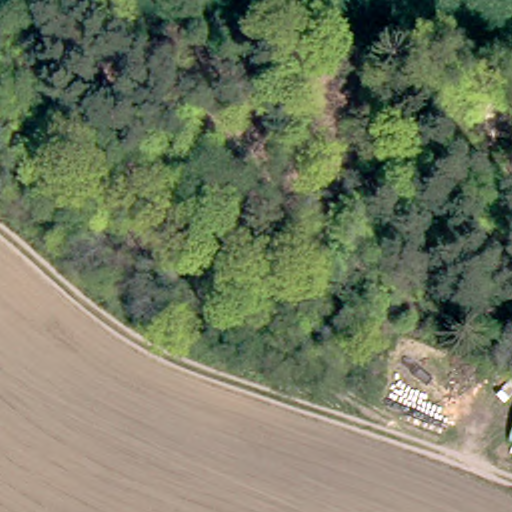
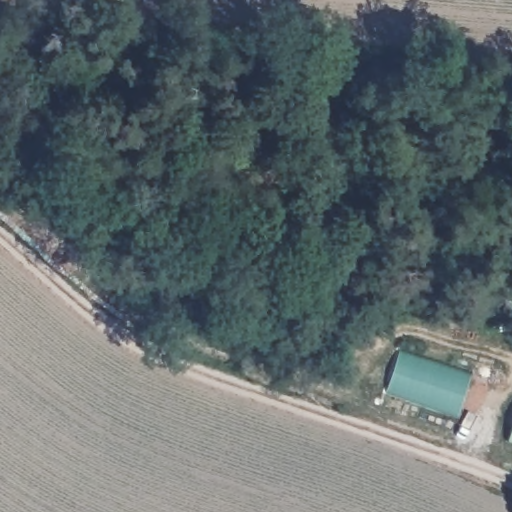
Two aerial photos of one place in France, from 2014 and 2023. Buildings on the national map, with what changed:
new [(472,369),(461,416),(386,391),(398,351),(472,369)]
unchanged [(512,432),(512,444),(509,443),(512,432)]

